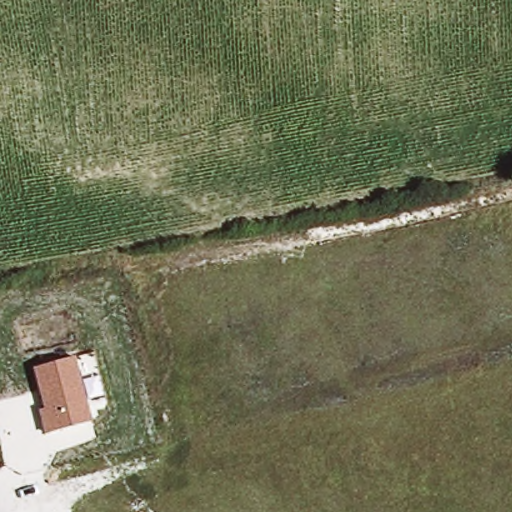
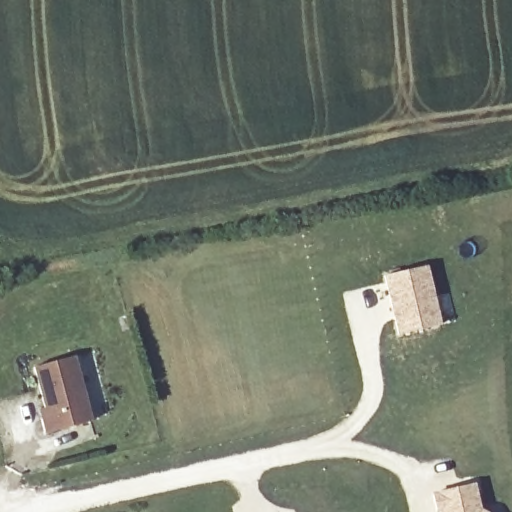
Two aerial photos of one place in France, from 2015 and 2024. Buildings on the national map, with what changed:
new [(427,265),(442,324),(396,335),(382,275),(427,265)]
unchanged [(91,420),(45,434),(38,410),(44,407),(34,368),(75,357),(91,420)]
new [(475,482),(482,509),(488,510),(489,512),(437,512),(432,492),(475,482)]

